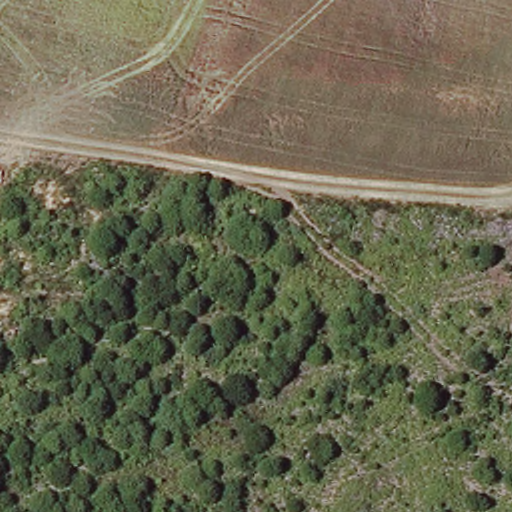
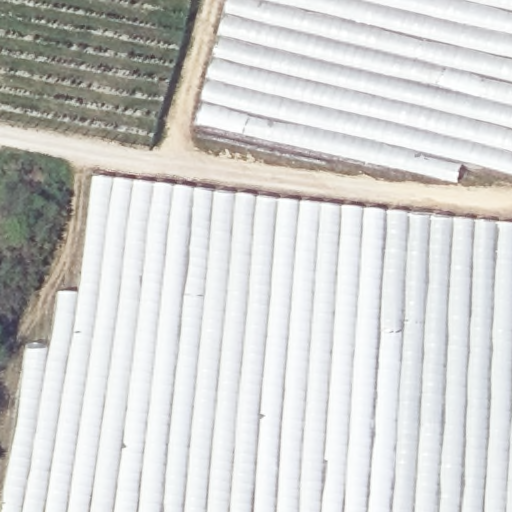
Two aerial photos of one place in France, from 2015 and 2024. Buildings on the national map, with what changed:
new [(512,175),(463,162),(456,182),(195,124),(227,0),(512,0),(512,175)]
new [(14,424),(25,346),(46,348),(56,290),(77,292),(90,175),(406,212),(512,223),(512,512),(0,512),(0,505),(3,482),(14,424)]

